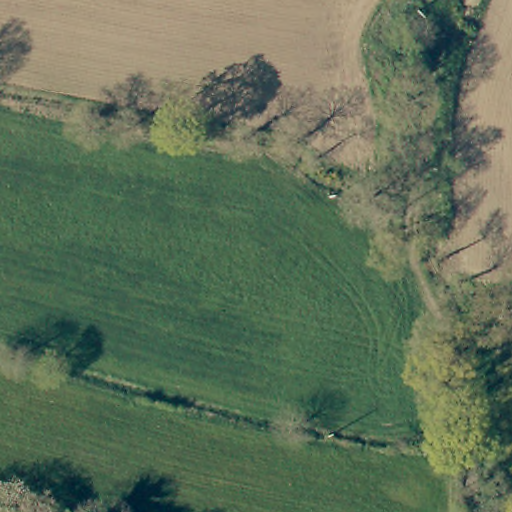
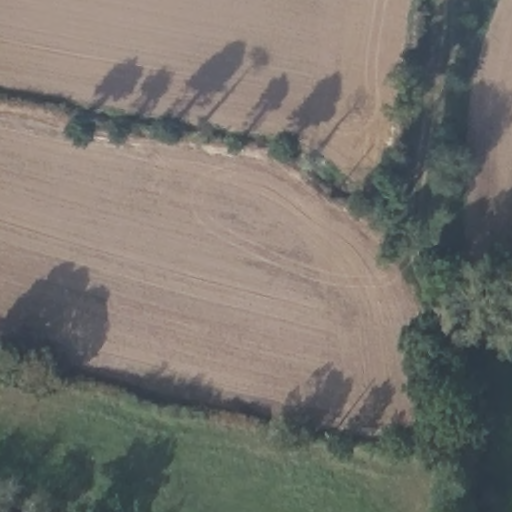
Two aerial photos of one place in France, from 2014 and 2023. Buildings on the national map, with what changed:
[]

